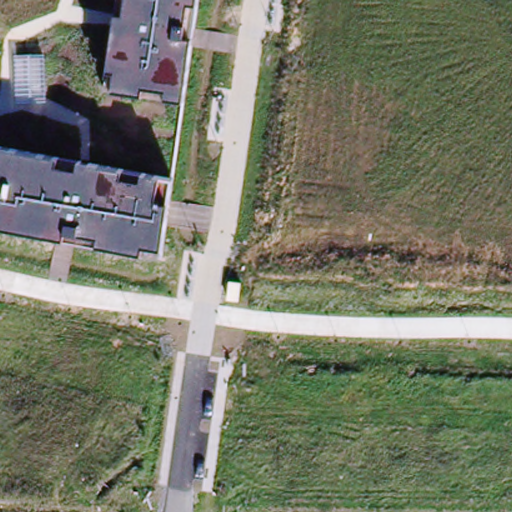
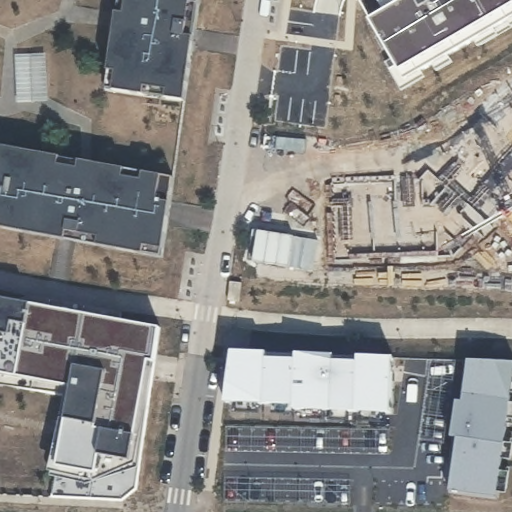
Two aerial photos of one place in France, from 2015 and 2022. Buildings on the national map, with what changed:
unchanged [(106,90),(118,0),(198,0),(185,102),(106,90)]
unchanged [(170,202),(163,248),(163,256),(146,254),(141,252),(0,227),(0,144),(173,178),(170,202)]
new [(54,490),(63,411),(63,403),(60,397),(56,396),(0,386),(0,299),(29,305),(159,328),(140,436),(135,489),(51,497),(54,490)]
new [(267,352),(267,359),(295,360),(295,353),(334,355),(333,361),(358,363),(358,355),(392,357),(390,412),(293,410),(293,405),(223,404),(231,351),(267,352)]
new [(449,491),(456,438),(450,437),(457,400),(462,401),(468,360),(512,362),(512,387),(496,497),(449,491)]

